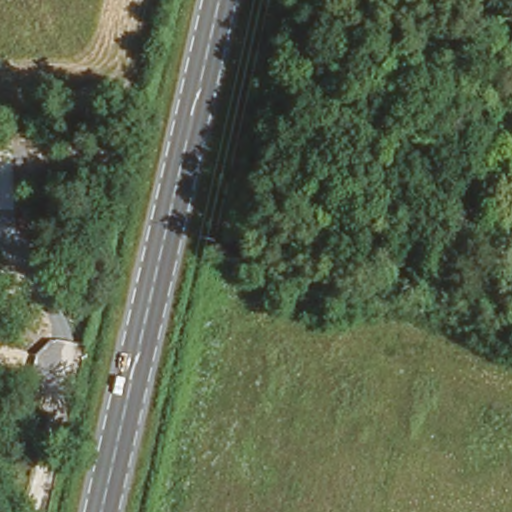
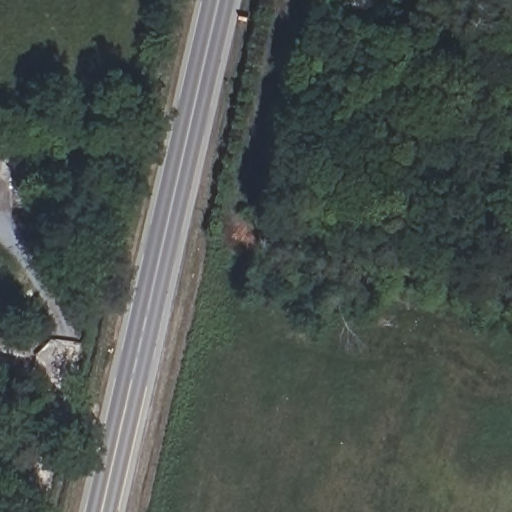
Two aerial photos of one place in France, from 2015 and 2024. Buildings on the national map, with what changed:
unchanged [(87,72),(92,72),(93,81),(85,81),(67,82),(67,73),(87,72)]

